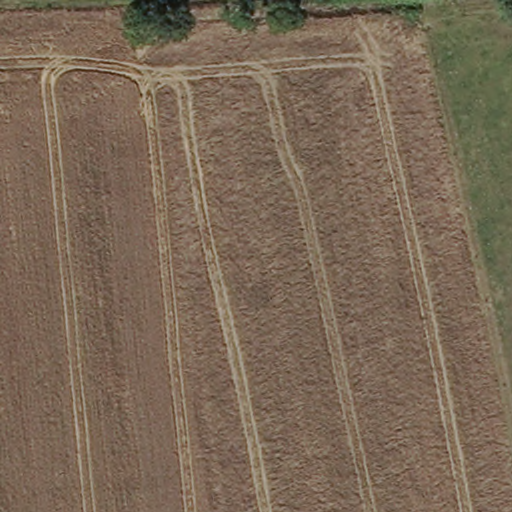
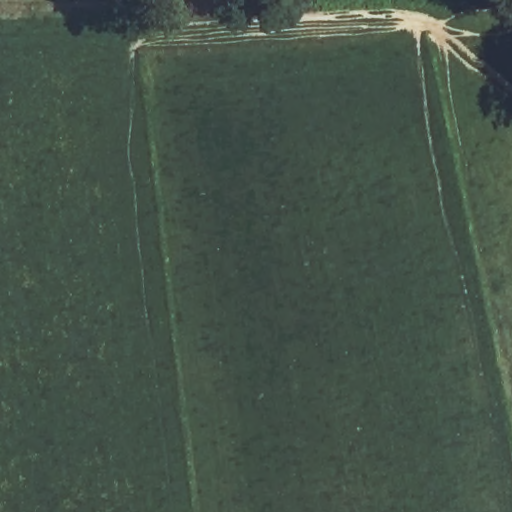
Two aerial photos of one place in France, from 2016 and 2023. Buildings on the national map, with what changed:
[]

